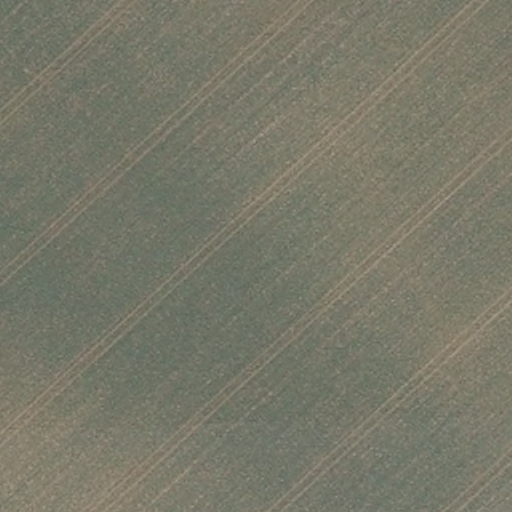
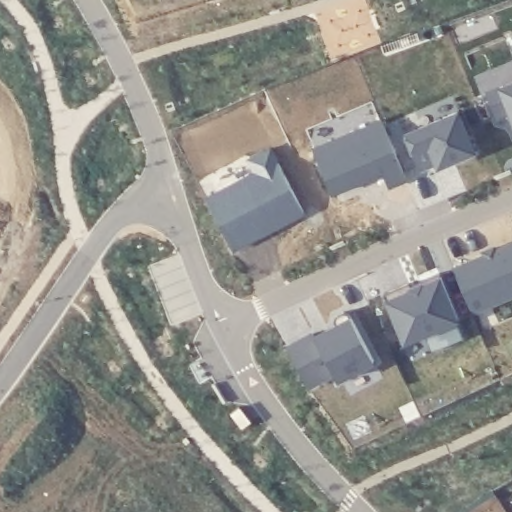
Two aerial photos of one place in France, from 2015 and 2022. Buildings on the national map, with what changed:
new [(487,93),(512,82),(512,114),(511,111),(496,116),(487,93)]
new [(406,134),(459,111),(475,151),(454,159),(453,155),(420,168),(406,134)]
new [(314,148),(383,119),(408,178),(389,186),(384,171),(333,193),(314,148)]
new [(257,171),(250,159),(271,148),(304,211),(274,227),(273,222),(249,235),(251,239),(234,248),(207,197),(257,171)]
new [(454,268),(512,244),(512,295),(473,311),(454,268)]
new [(468,336),(413,360),(384,293),(410,283),(413,288),(423,284),(422,280),(440,273),(468,336)]
new [(314,331),(316,335),(336,324),(334,320),(336,314),(344,310),(349,311),(374,359),(338,378),(334,372),(309,385),(287,346),(314,331)]

